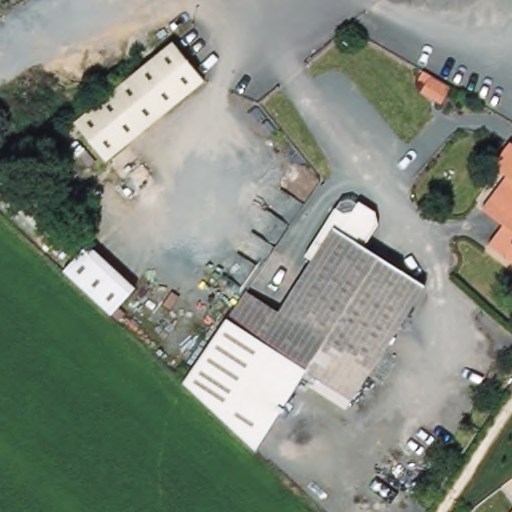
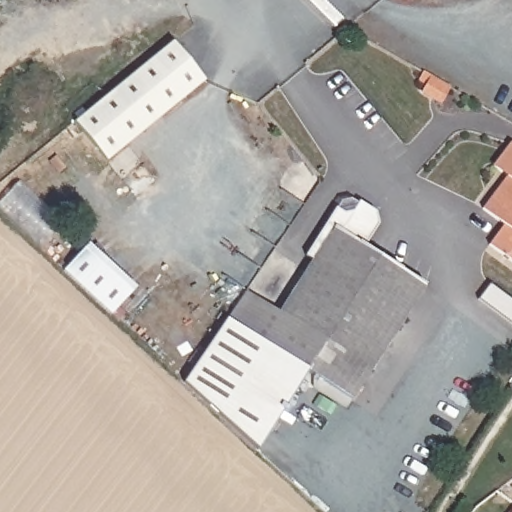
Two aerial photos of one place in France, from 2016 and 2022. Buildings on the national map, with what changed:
unchanged [(137,70),(174,40),(207,81),(110,160),(76,121),(137,70)]
unchanged [(415,87),(420,77),(411,72),(414,65),(425,72),(442,82),(433,100),(415,87)]
unchanged [(503,229),(483,212),(506,179),(493,171),(512,146),(512,265),(489,249),(503,229)]
unchanged [(337,230),(324,252),(316,247),(309,259),(304,255),(334,209),(342,214),(353,211),(359,202),(376,212),(378,224),(363,247),(337,230)]
unchanged [(282,316),(309,274),(303,270),(316,247),(324,252),(337,230),(426,287),(356,402),(229,322),(247,293),(282,316)]
unchanged [(88,240),(142,287),(114,317),(64,272),(88,240)]
unchanged [(255,451),(182,381),(224,318),(229,322),(305,370),(255,451)]
unchanged [(512,512),(510,512),(512,510),(512,512)]

